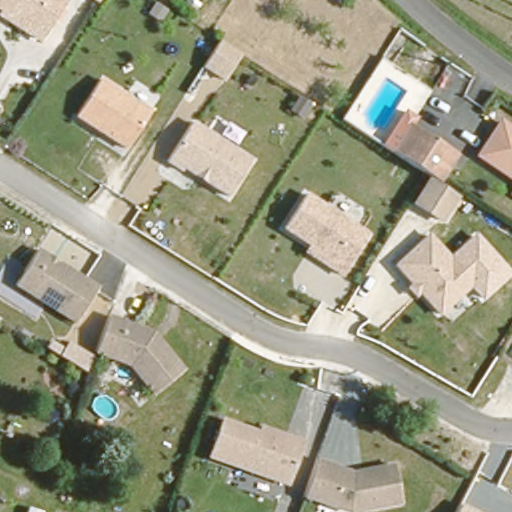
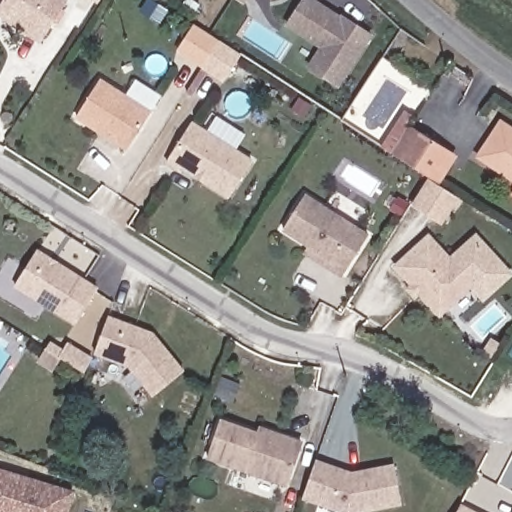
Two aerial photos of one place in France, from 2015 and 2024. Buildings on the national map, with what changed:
unchanged [(0,1),(0,0),(61,0),(39,33),(25,23),(1,7),(4,3),(0,1)]
new [(97,2),(93,0),(99,0),(97,2)]
new [(245,6),(238,0),(250,0),(245,6)]
new [(338,88),(305,65),(317,46),(286,25),(303,0),(318,0),(372,37),(338,88)]
new [(224,81),(210,71),(191,95),(187,91),(202,67),(176,50),(194,22),(241,54),(224,81)]
unchanged [(151,112),(128,148),(77,116),(100,79),(151,112)]
unchanged [(433,172),(396,148),(413,122),(460,151),(443,179),(433,172)]
unchanged [(478,157),(501,122),(512,129),(512,180),(478,157)]
unchanged [(252,161),(230,197),(184,168),(182,171),(168,162),(192,123),(252,161)]
new [(458,198),(441,225),(410,206),(427,177),(458,198)]
unchanged [(312,246),(285,229),(306,195),(370,236),(345,276),(330,266),(308,253),(312,246)]
new [(476,232),(512,271),(512,277),(485,301),(470,287),(478,279),(467,267),(463,271),(455,262),(450,255),(476,232)]
unchanged [(431,235),(450,255),(455,262),(463,271),(467,267),(478,279),(470,287),(441,312),(398,264),(431,235)]
unchanged [(97,289),(75,323),(15,284),(37,250),(97,289)]
unchanged [(153,334),(184,371),(154,395),(130,366),(95,352),(109,317),(153,334)]
unchanged [(260,432),(262,426),(273,431),(302,442),(286,484),(210,454),(223,418),(260,432)]
unchanged [(393,471),(401,509),(385,512),(330,512),(303,502),(306,490),(311,480),(312,477),(316,466),(352,479),(393,471)]
new [(67,512),(0,512),(0,470),(73,493),(67,512)]
unchanged [(457,512),(460,507),(470,512),(457,512)]

